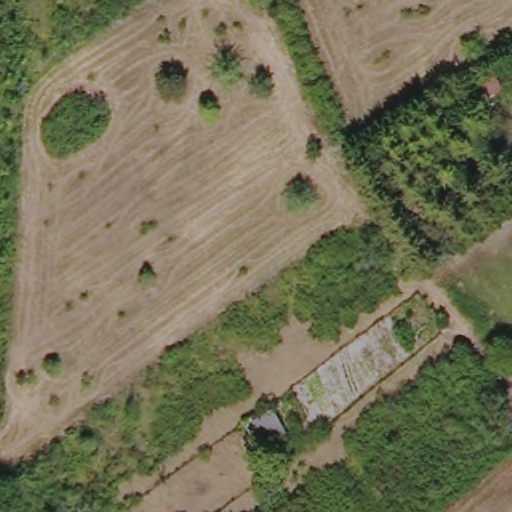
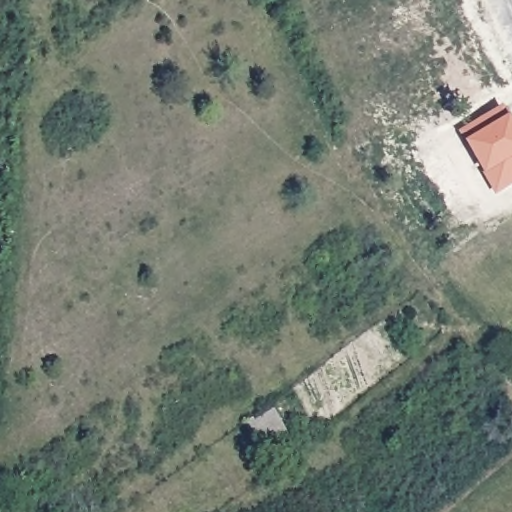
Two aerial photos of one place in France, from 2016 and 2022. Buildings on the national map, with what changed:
new [(495,192),(457,127),(503,104),(512,118),(512,182),(495,192)]
unchanged [(288,435),(272,443),(260,423),(276,413),(288,435)]

